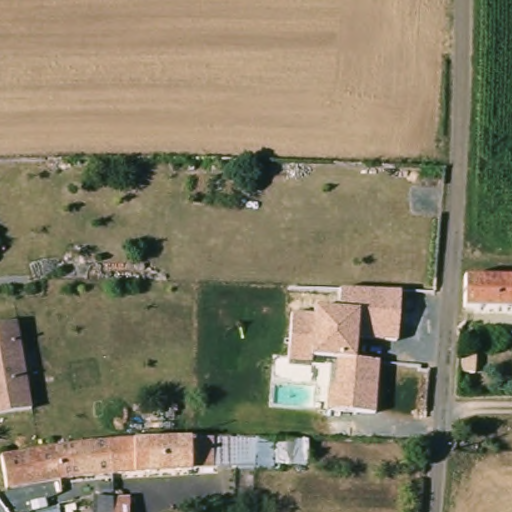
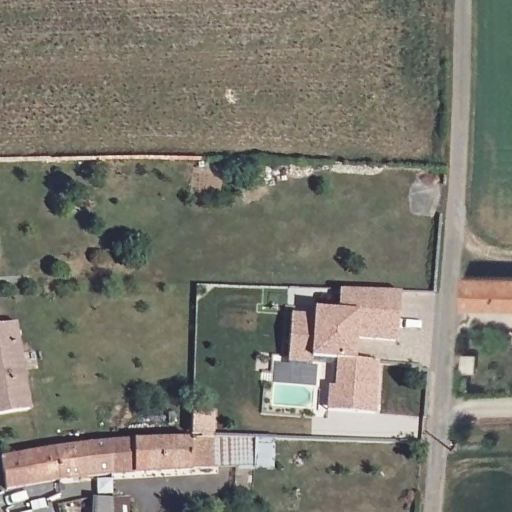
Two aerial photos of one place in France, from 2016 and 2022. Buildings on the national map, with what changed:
unchanged [(512,277),(512,313),(474,312),(477,277),(512,277)]
unchanged [(325,410),(328,385),(331,385),(334,360),(311,358),(311,365),(288,363),(292,313),(313,314),(314,306),(340,308),(342,288),(401,291),(398,342),(358,340),(356,360),(379,361),(376,414),(325,410)]
unchanged [(0,410),(0,321),(9,320),(25,405),(0,410)]
unchanged [(110,477),(106,443),(187,440),(188,436),(191,436),(223,436),(251,437),(269,437),(268,470),(249,469),(249,466),(209,470),(110,477)]
unchanged [(59,482),(3,493),(0,476),(0,458),(76,443),(105,437),(106,440),(106,442),(106,443),(110,477),(59,482)]
unchanged [(131,502),(130,512),(93,512),(94,503),(94,500),(106,500),(112,500),(111,501),(131,502)]

